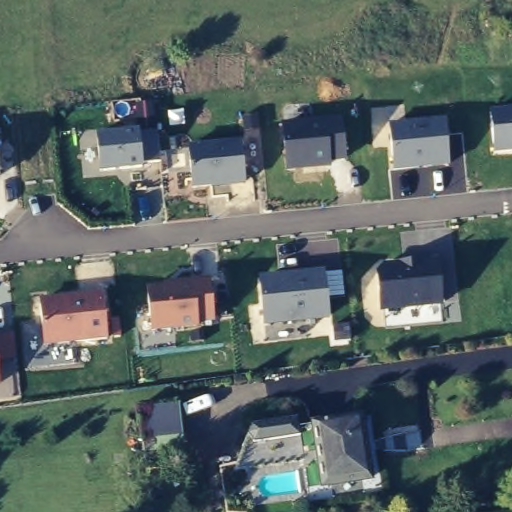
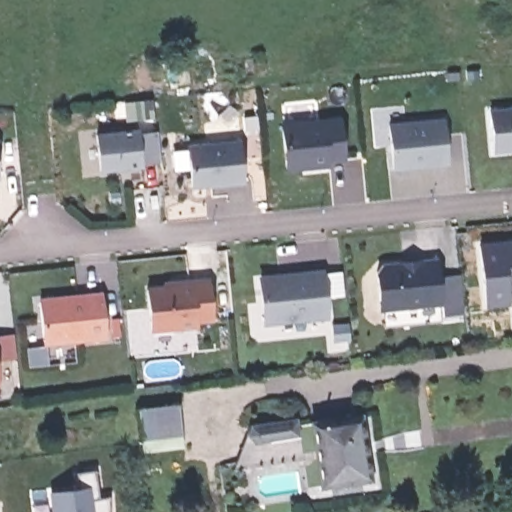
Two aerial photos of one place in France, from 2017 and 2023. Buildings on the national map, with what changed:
unchanged [(512,107),(512,152),(493,153),(489,109),(512,107)]
unchanged [(331,160),(332,165),(285,171),(281,121),(341,114),(345,158),(331,160)]
unchanged [(388,123),(447,118),(452,163),(394,171),(388,123)]
unchanged [(142,161),(142,165),(100,168),(98,131),(139,128),(139,132),(158,131),(161,160),(142,161)]
unchanged [(190,190),(186,144),(243,138),(247,184),(190,190)]
unchanged [(1,178),(0,178),(0,172),(1,178)]
new [(510,304),(486,307),(479,242),(512,240),(512,288),(508,288),(510,304)]
unchanged [(380,310),(374,262),(439,257),(443,304),(380,310)]
unchanged [(322,271),(326,315),(267,321),(262,282),(291,279),(290,274),(322,271)]
unchanged [(199,322),(200,327),(153,332),(149,287),(164,285),(164,281),(209,277),(215,320),(199,322)]
unchanged [(109,339),(44,346),(38,297),(103,290),(109,339)]
unchanged [(184,444),(144,450),(138,409),(179,403),(184,444)]
unchanged [(323,484),(319,456),(304,458),(236,469),(251,423),(297,416),(298,423),(313,421),(361,413),(371,476),(323,484)]
new [(75,472),(94,469),(98,497),(109,495),(110,512),(54,512),(51,493),(78,489),(75,472)]

